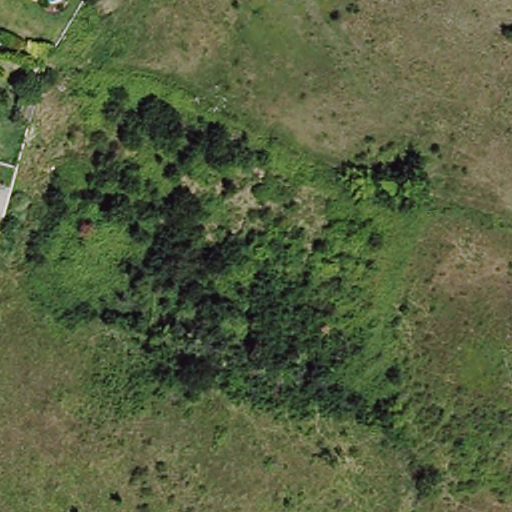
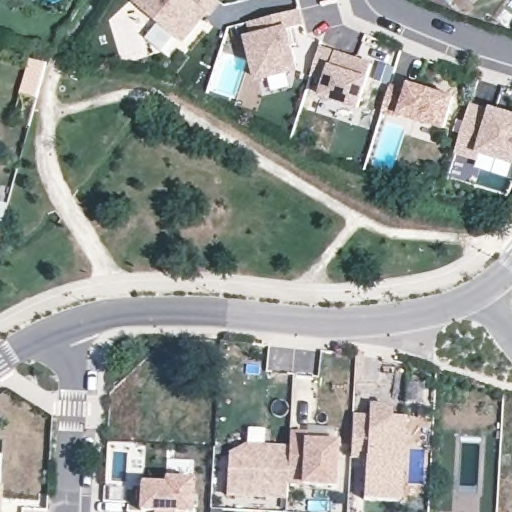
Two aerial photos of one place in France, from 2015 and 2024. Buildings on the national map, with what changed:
new [(205,11),(181,40),(133,0),(218,0),(207,13),(205,11)]
new [(252,20),(301,8),(305,26),(294,29),(299,46),(294,48),(300,71),(262,81),(250,36),(256,35),(252,20)]
new [(317,51),(369,69),(356,110),(320,98),(325,83),(309,78),(317,51)]
new [(382,109),(390,85),(406,90),(408,83),(453,96),(443,127),(399,114),(398,116),(382,111),(382,109)]
new [(470,104),(491,111),(492,108),(512,114),(512,161),(479,151),(476,158),(455,151),(470,104)]
new [(353,415),(369,416),(369,404),(391,405),(391,415),(406,416),(401,501),(363,498),(365,457),(350,456),(353,415)]
new [(289,433),(303,434),(303,441),(334,443),(331,484),(286,482),(289,433)]
new [(285,509),(227,506),(229,467),(246,458),(288,460),(285,509)]
new [(155,506),(139,506),(141,480),(164,481),(165,476),(191,477),(189,509),(182,509),(182,512),(155,512),(155,506)]

